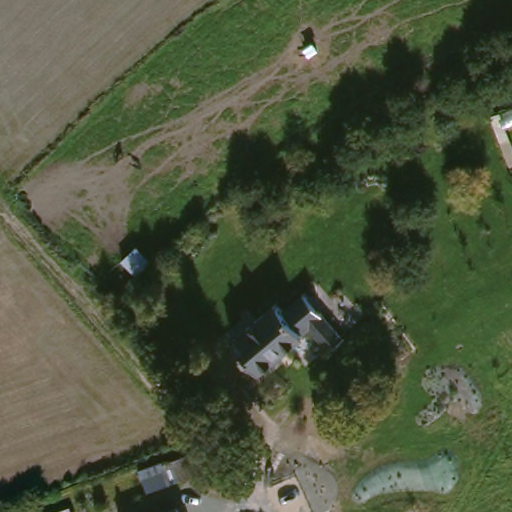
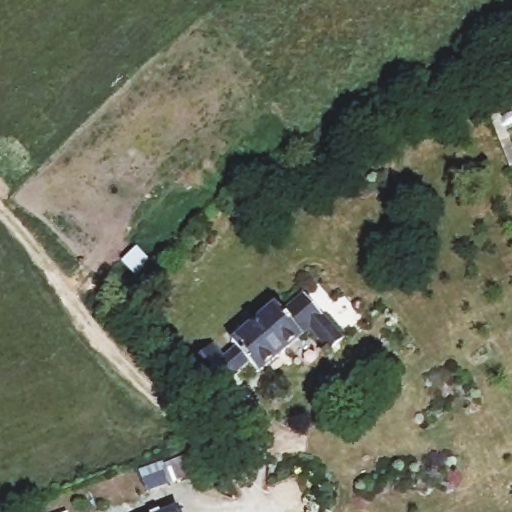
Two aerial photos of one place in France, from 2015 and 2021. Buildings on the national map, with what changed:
unchanged [(343,334),(330,345),(311,322),(260,366),(233,336),(277,298),(283,306),(304,288),(343,334)]
unchanged [(147,492),(139,471),(163,461),(164,464),(186,455),(193,474),(147,492)]
unchanged [(180,512),(164,512),(178,506),(180,512)]

